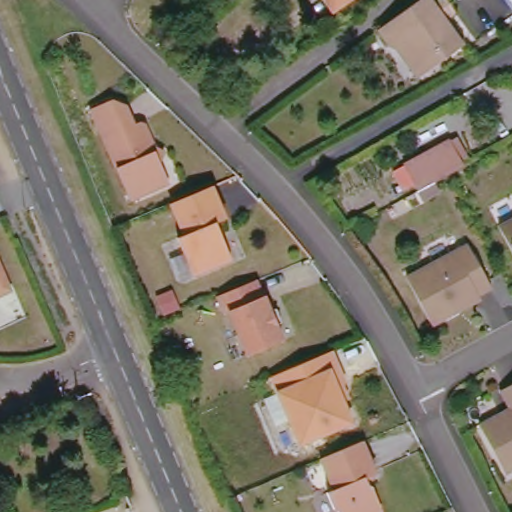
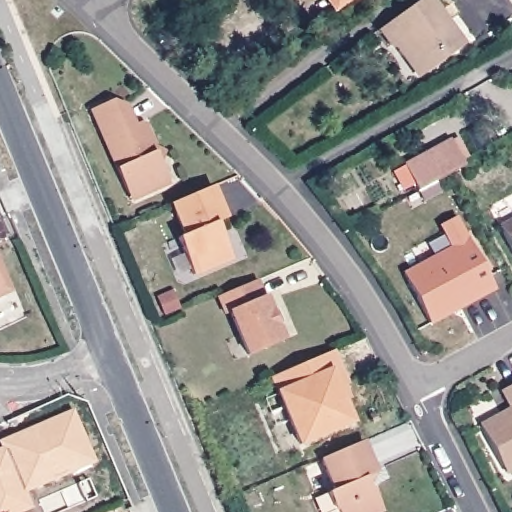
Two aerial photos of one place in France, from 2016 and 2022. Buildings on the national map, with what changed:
unchanged [(344,9),(339,0),(357,0),(344,9)]
unchanged [(417,16),(434,4),(439,0),(447,0),(456,11),(446,20),(464,45),(431,70),(417,68),(401,46),(404,45),(399,40),(391,45),(379,30),(410,7),(417,16)]
unchanged [(129,195),(92,110),(111,101),(127,107),(135,125),(139,123),(146,125),(158,151),(156,152),(170,184),(154,190),(132,200),(129,195)]
unchanged [(442,146),(447,143),(461,169),(455,171),(439,180),(409,196),(396,170),(442,146)]
unchanged [(213,186),(226,219),(213,225),(217,233),(222,235),(232,259),(194,275),(178,237),(186,235),(172,204),(213,186)]
unchanged [(512,220),(512,249),(500,226),(512,220)]
unchanged [(469,244),(493,288),(458,307),(459,311),(434,325),(408,277),(469,244)]
unchanged [(0,275),(0,264),(4,273),(0,275)]
unchanged [(0,294),(0,277),(6,291),(0,294)]
unchanged [(257,280),(264,296),(265,296),(284,340),(249,355),(231,312),(226,314),(218,296),(257,280)]
unchanged [(333,351),(346,383),(338,387),(353,422),(301,445),(272,377),(333,351)]
unchanged [(503,467),(481,425),(512,408),(502,390),(512,385),(512,471),(507,474),(503,467)]
new [(29,491),(35,506),(22,512),(0,512),(0,449),(4,447),(2,441),(76,408),(98,462),(29,491)]
unchanged [(377,473),(366,478),(369,485),(373,487),(380,503),(376,512),(340,512),(338,508),(336,509),(329,492),(335,490),(322,458),(363,441),(377,473)]

